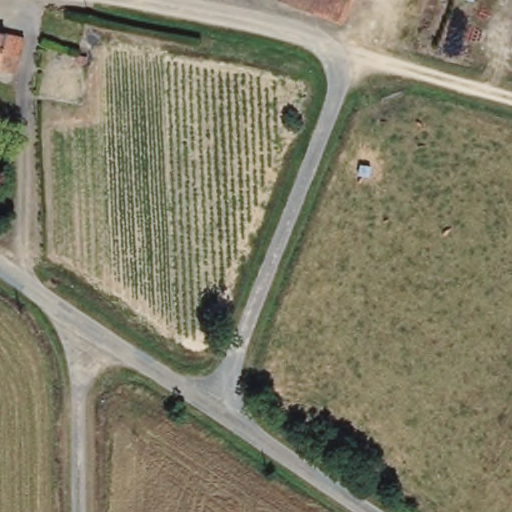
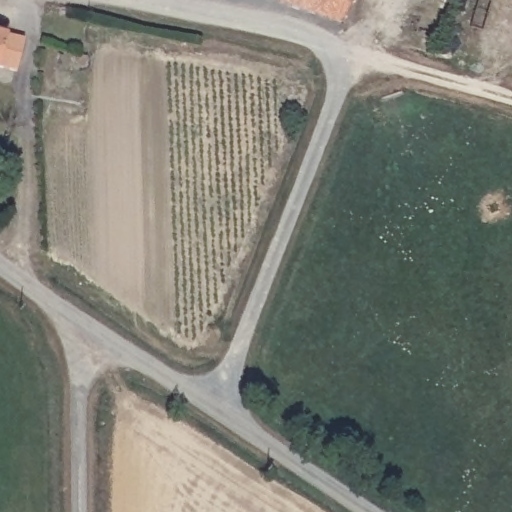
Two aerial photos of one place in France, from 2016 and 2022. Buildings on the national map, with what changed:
unchanged [(341,25),(286,0),(353,0),(341,25)]
unchanged [(25,38),(16,74),(3,73),(5,67),(0,66),(0,32),(25,38)]

